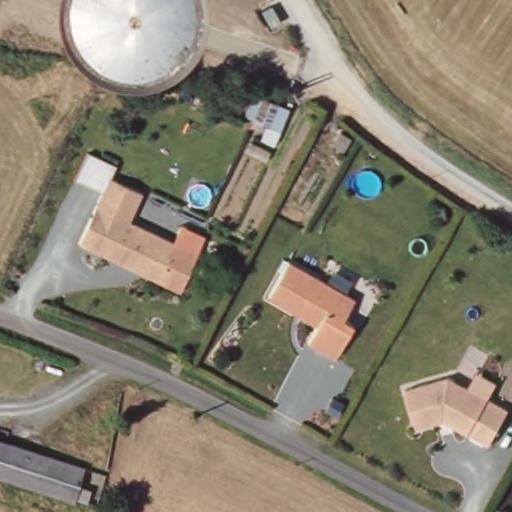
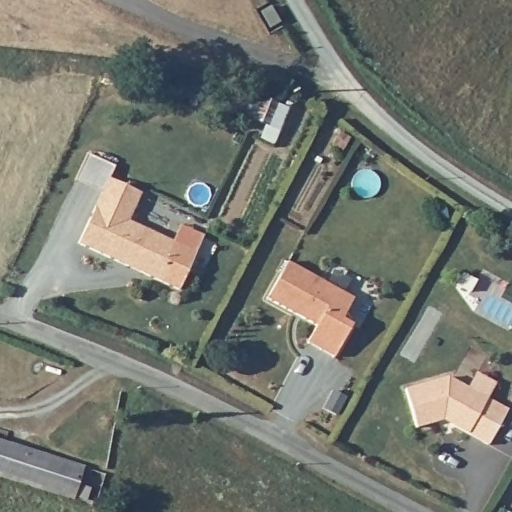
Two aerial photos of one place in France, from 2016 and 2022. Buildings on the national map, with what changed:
unchanged [(108,179),(140,195),(127,223),(170,244),(161,264),(168,268),(160,284),(77,244),(108,179)]
unchanged [(292,259),(358,296),(346,317),(357,323),(338,356),(311,340),(321,323),(271,295),(292,259)]
unchanged [(449,374),(509,408),(490,443),(444,417),(418,426),(406,387),(449,374)]
unchanged [(73,499),(0,476),(0,440),(84,468),(73,499)]

